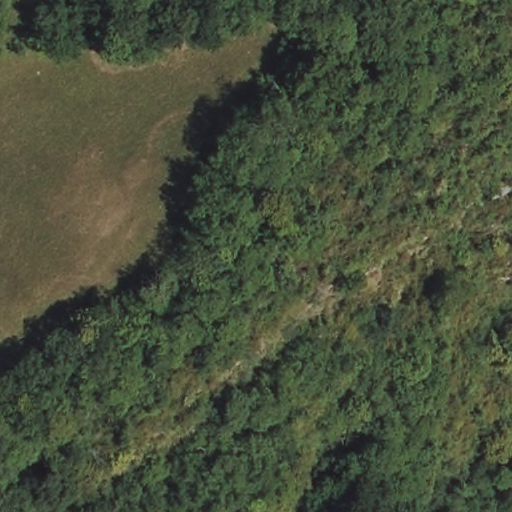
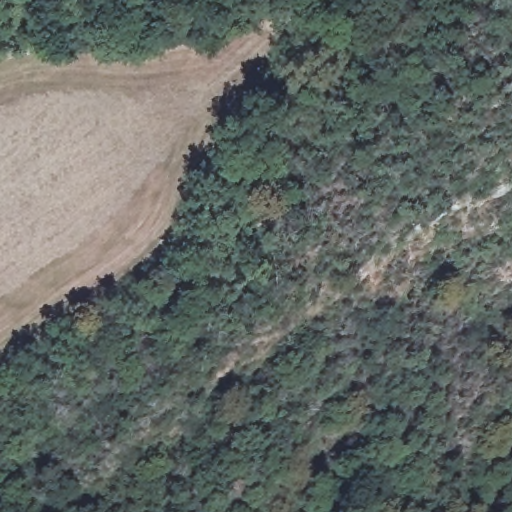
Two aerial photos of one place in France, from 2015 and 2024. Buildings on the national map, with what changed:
[]

